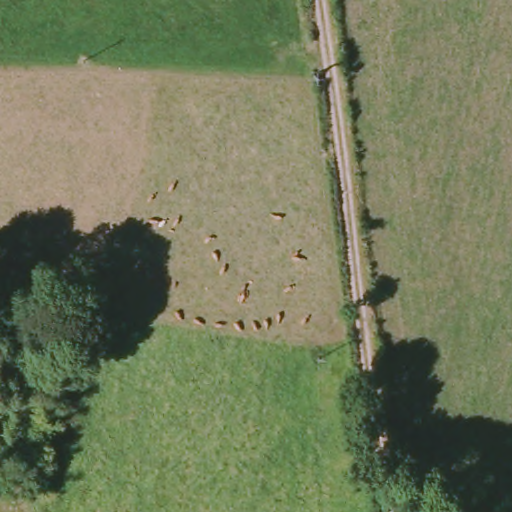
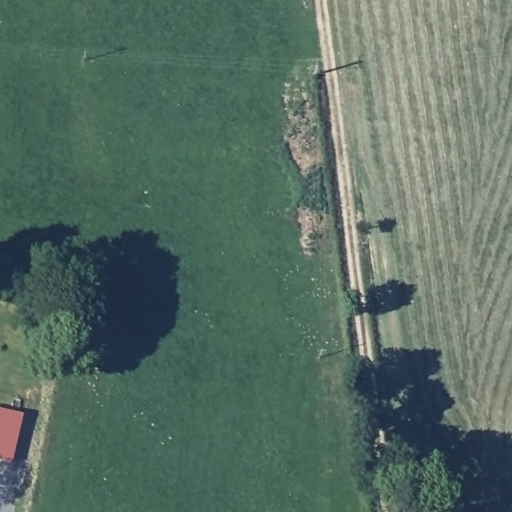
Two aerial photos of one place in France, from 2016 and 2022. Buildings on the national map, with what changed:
new [(12,462),(0,459),(0,409),(22,414),(12,462)]

